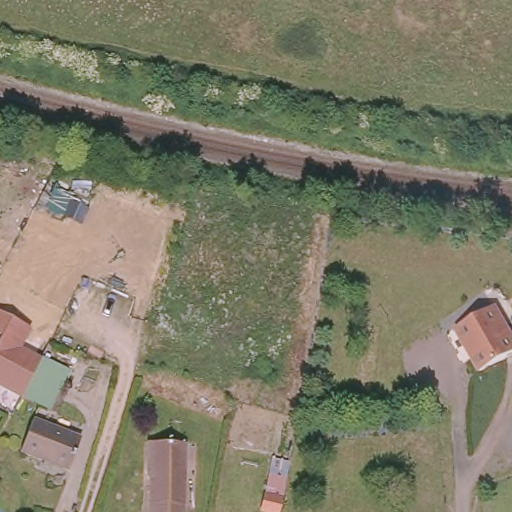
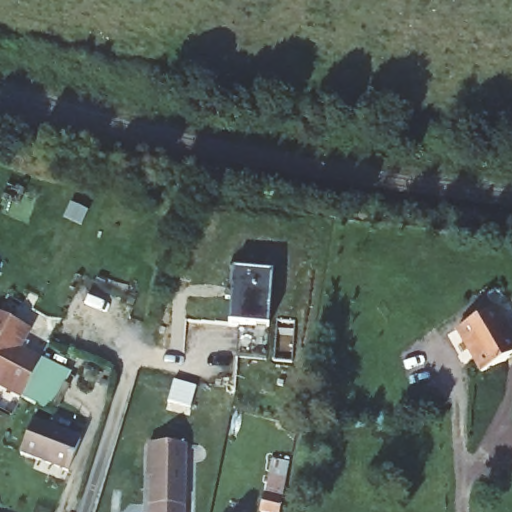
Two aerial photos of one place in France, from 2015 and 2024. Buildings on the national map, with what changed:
new [(270,271),(268,324),(265,358),(237,353),(237,322),(230,321),(233,269),(270,271)]
unchanged [(496,309),(512,340),(512,355),(479,372),(456,330),(496,309)]
unchanged [(0,332),(0,330),(1,330),(0,332)]
unchanged [(0,335),(19,344),(0,380),(0,335)]
unchanged [(0,384),(0,380),(19,344),(42,357),(22,396),(0,384)]
unchanged [(74,373),(53,413),(22,396),(42,357),(74,373)]
unchanged [(80,438),(68,471),(21,454),(32,421),(80,438)]
unchanged [(180,439),(179,512),(145,512),(146,462),(143,462),(143,439),(180,439)]

